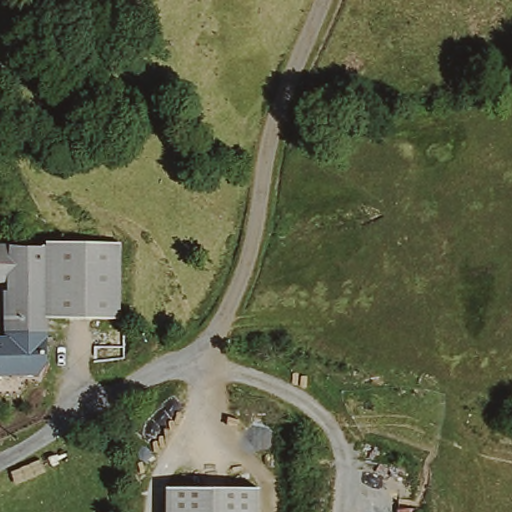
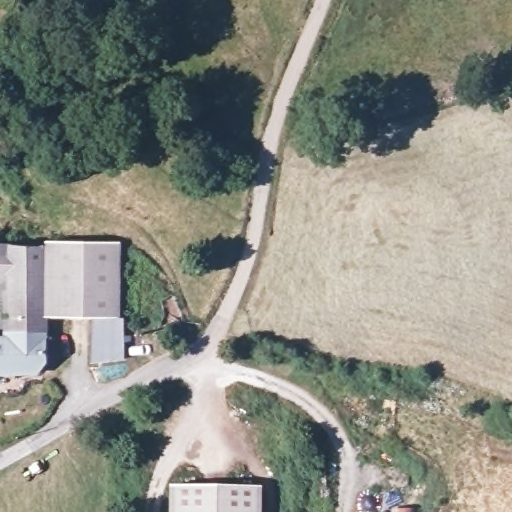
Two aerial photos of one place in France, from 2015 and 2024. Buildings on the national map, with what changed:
unchanged [(0,246),(0,234),(4,234),(4,246),(0,246)]
unchanged [(110,316),(90,318),(69,318),(50,316),(50,250),(48,243),(111,246),(110,316)]
unchanged [(50,316),(49,362),(37,373),(0,374),(0,338),(12,337),(13,247),(50,250),(50,316)]
new [(110,316),(125,317),(124,358),(92,363),(93,317),(110,316)]
unchanged [(258,487),(258,512),(167,512),(167,488),(258,487)]

